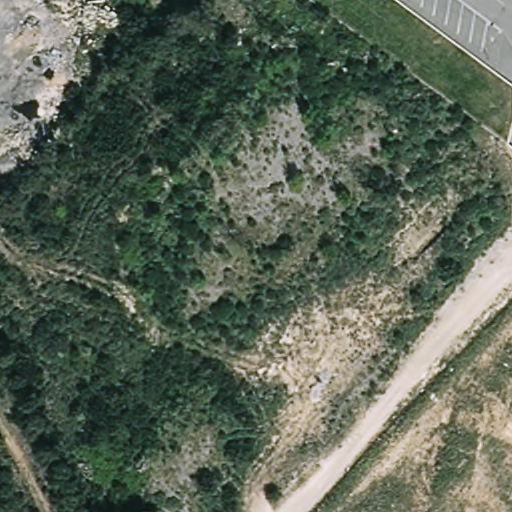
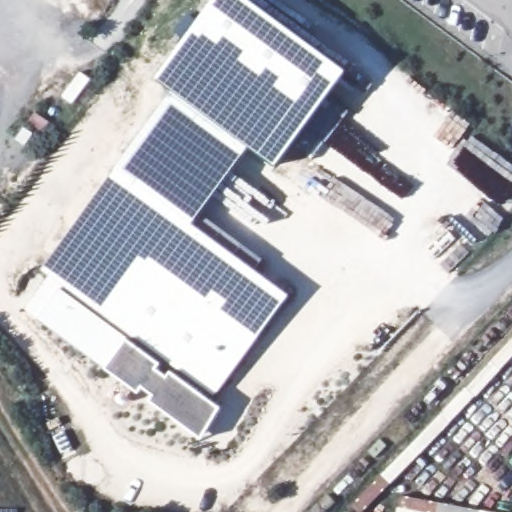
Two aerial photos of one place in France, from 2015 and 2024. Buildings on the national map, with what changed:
new [(344,71),(274,166),(250,147),(191,224),(200,232),(208,221),(260,260),(255,272),(286,296),(211,403),(218,408),(198,440),(147,401),(151,394),(139,386),(134,392),(104,368),(37,318),(62,286),(41,270),(116,169),(173,89),(155,77),(211,0),(248,0),(344,71)]
new [(512,333),(512,355),(364,512),(362,512),(354,506),(512,333)]
new [(396,512),(401,494),(486,512),(396,512)]

